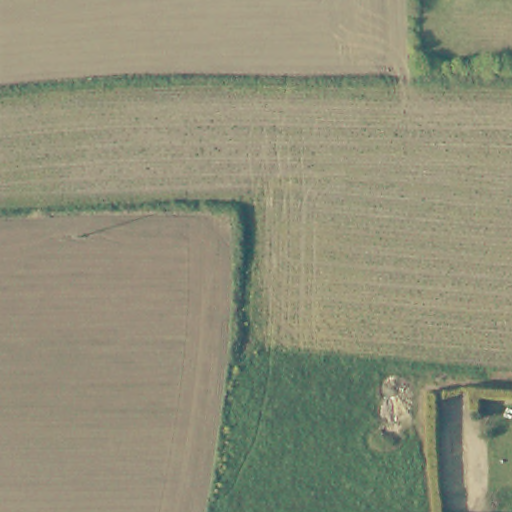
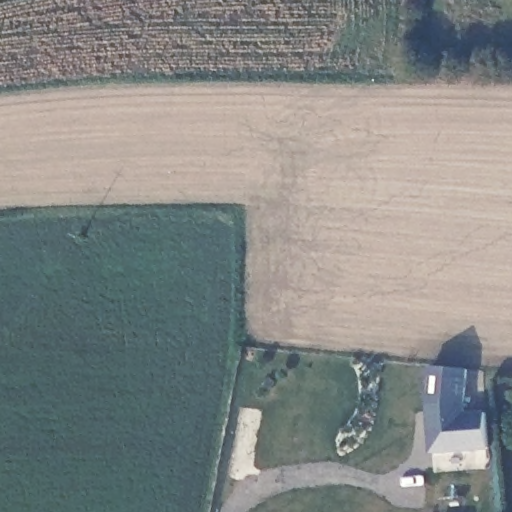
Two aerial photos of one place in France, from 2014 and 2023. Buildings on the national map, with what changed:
new [(464,410),(485,410),(487,450),(428,453),(424,406),(429,366),(467,370),(464,410)]

